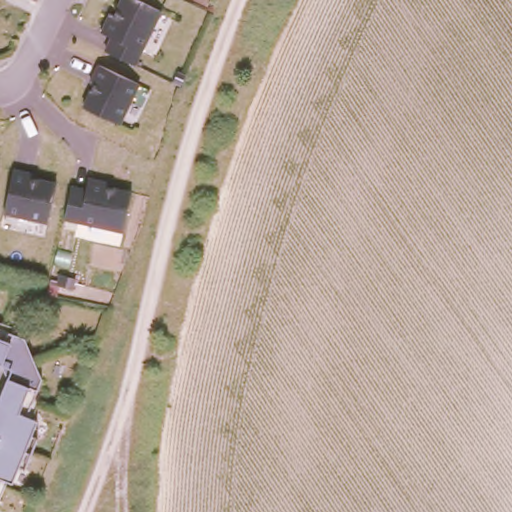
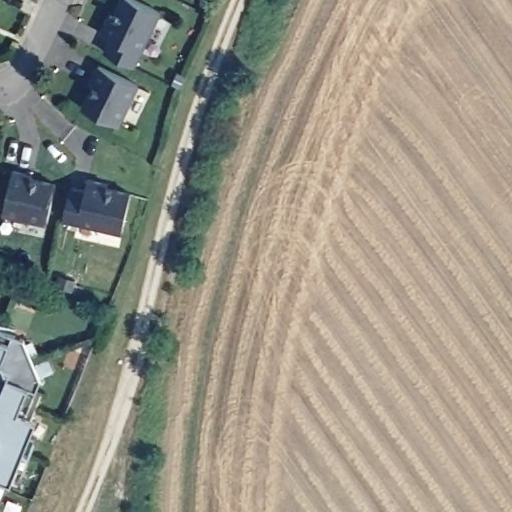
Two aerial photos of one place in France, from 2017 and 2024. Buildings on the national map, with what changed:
unchanged [(103,52),(110,39),(100,34),(118,0),(129,0),(158,11),(138,64),(103,52)]
unchanged [(93,86),(88,84),(97,68),(137,86),(116,126),(82,108),(93,86)]
unchanged [(4,217),(11,173),(35,177),(35,182),(56,186),(47,225),(4,217)]
unchanged [(64,222),(70,190),(87,193),(88,181),(111,184),(110,191),(130,194),(122,232),(64,222)]
unchanged [(0,342),(14,347),(37,382),(33,395),(40,399),(32,421),(38,426),(15,482),(7,480),(0,498),(0,404),(5,391),(0,383),(0,338),(2,339),(0,342)]

